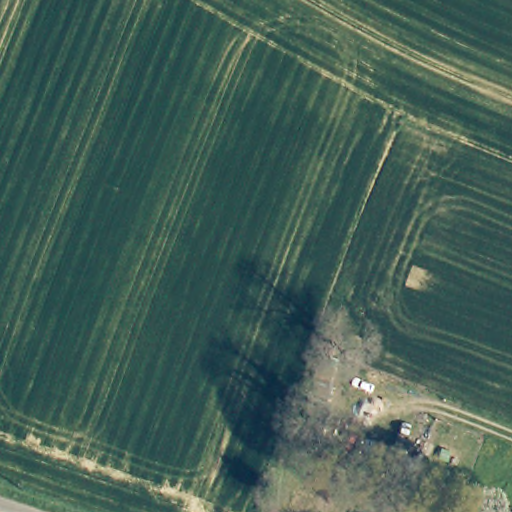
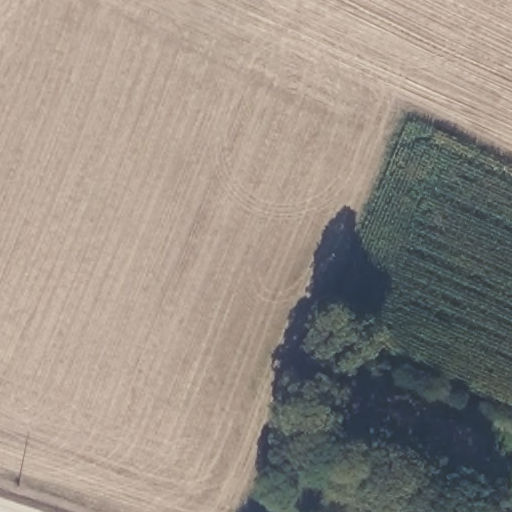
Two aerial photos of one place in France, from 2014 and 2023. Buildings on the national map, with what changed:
unchanged [(333,387),(328,401),(308,394),(314,380),(333,387)]

